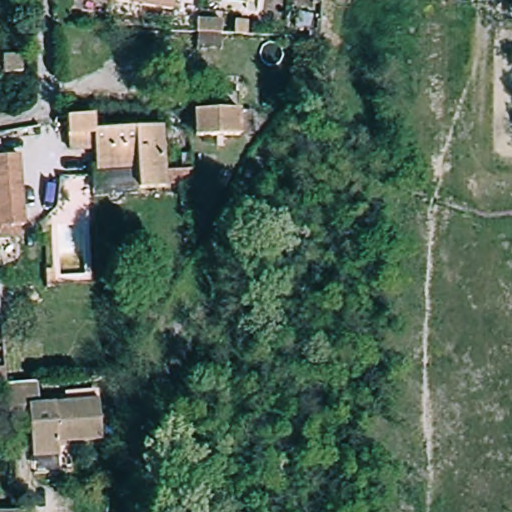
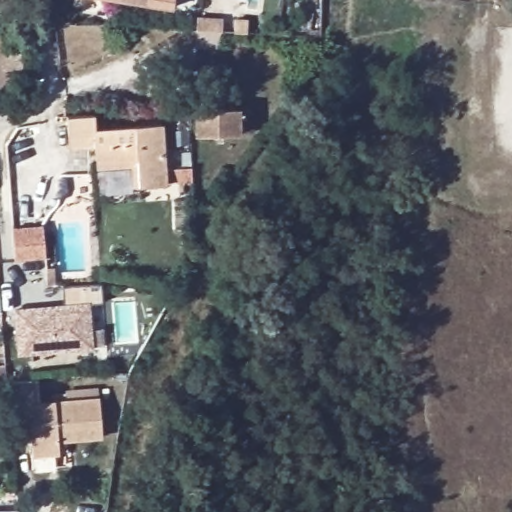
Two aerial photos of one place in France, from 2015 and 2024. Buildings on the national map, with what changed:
unchanged [(132,0),(174,0),(173,6),(132,0)]
unchanged [(24,67),(4,69),(4,52),(23,51),(24,67)]
unchanged [(250,106),(250,132),(203,133),(202,107),(250,106)]
unchanged [(99,125),(166,121),(171,182),(143,185),(141,159),(100,161),(100,144),(74,145),(71,114),(98,112),(99,125)]
demolished [(21,181),(0,183),(0,156),(19,155),(21,181)]
unchanged [(188,176),(176,175),(176,164),(188,164),(188,176)]
new [(42,225),(46,257),(15,261),(11,228),(42,225)]
new [(46,268),(56,267),(57,287),(48,287),(46,268)]
new [(64,305),(63,286),(102,283),(103,303),(89,304),(92,346),(20,352),(17,309),(64,305)]
unchanged [(9,380),(0,380),(0,364),(7,363),(9,380)]
unchanged [(40,378),(43,402),(99,399),(103,436),(58,440),(58,452),(33,453),(31,415),(12,416),(9,380),(40,378)]

